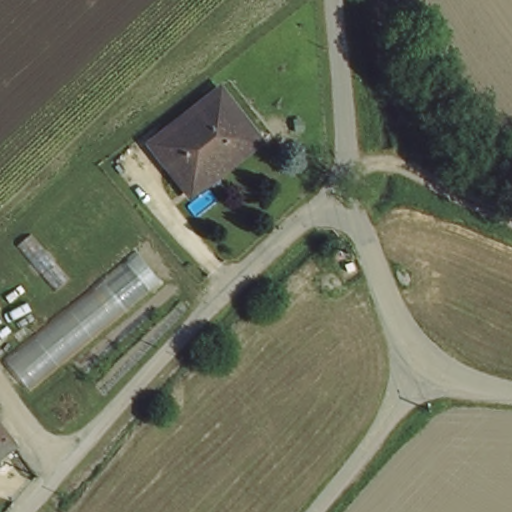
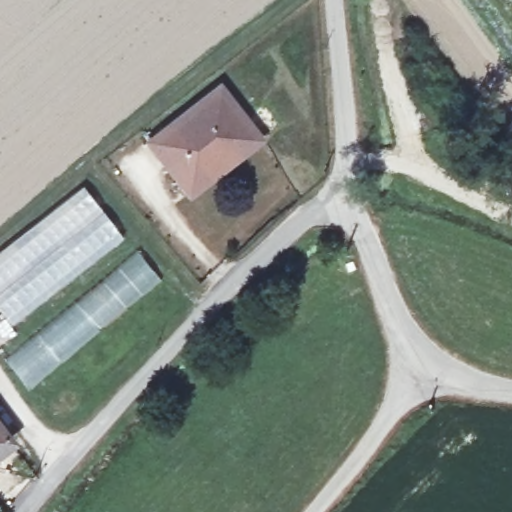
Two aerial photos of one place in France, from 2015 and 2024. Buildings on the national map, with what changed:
unchanged [(260,145),(227,172),(223,167),(190,194),(170,168),(165,172),(148,149),(218,92),(260,145)]
new [(0,309),(0,252),(82,188),(122,237),(11,323),(0,309)]
unchanged [(30,391),(4,360),(135,254),(161,282),(30,391)]
unchanged [(0,449),(0,432),(8,443),(0,449)]

